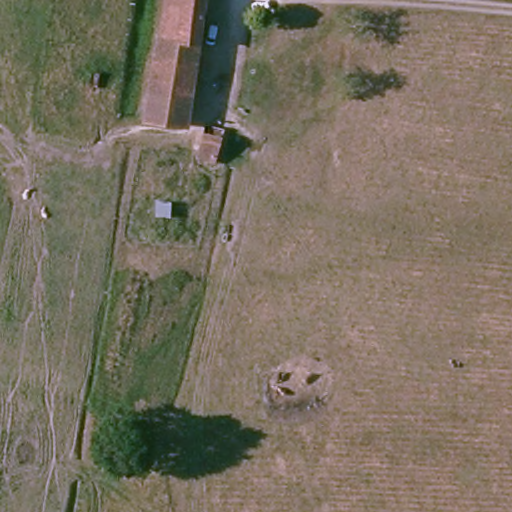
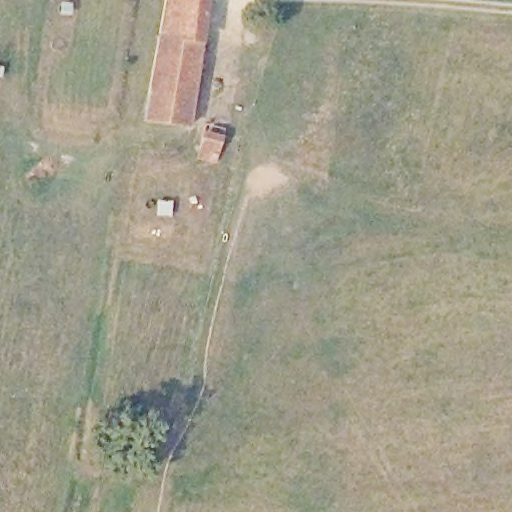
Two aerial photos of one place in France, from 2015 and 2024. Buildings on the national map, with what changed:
unchanged [(143,112),(164,0),(209,0),(185,121),(143,112)]

